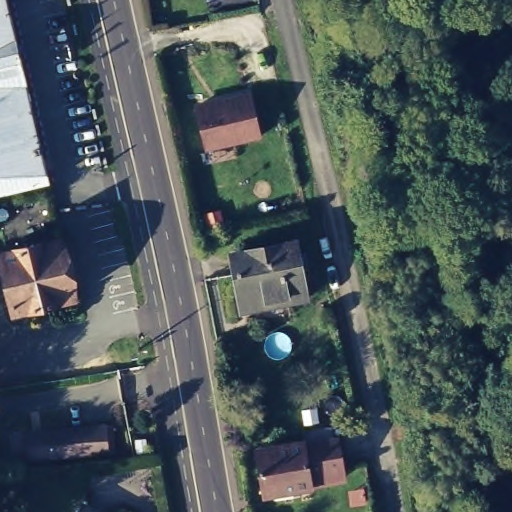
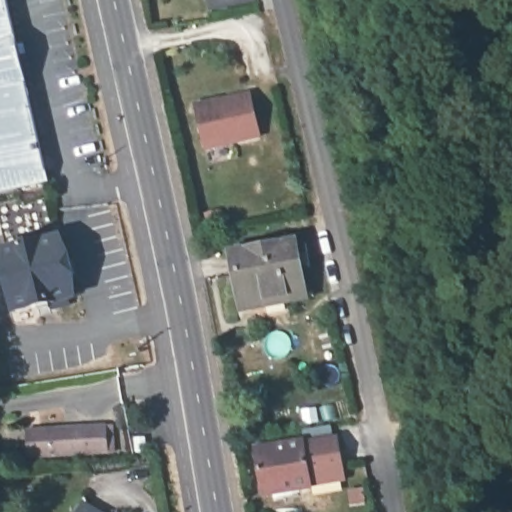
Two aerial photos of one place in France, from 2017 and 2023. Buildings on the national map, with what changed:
unchanged [(15,46),(0,50),(0,0),(4,0),(15,46)]
unchanged [(15,46),(42,179),(0,189),(0,50),(15,46)]
unchanged [(250,93),(260,139),(200,153),(189,105),(250,93)]
unchanged [(15,306),(1,251),(55,237),(70,293),(15,306)]
unchanged [(236,302),(227,249),(285,241),(294,291),(236,302)]
unchanged [(95,449),(37,450),(38,429),(105,424),(109,455),(94,456),(95,449)]
unchanged [(302,485),(259,488),(255,444),(297,440),(297,443),(316,441),(331,440),(334,467),(335,482),(302,485)]
unchanged [(75,512),(84,499),(104,512),(75,512)]

